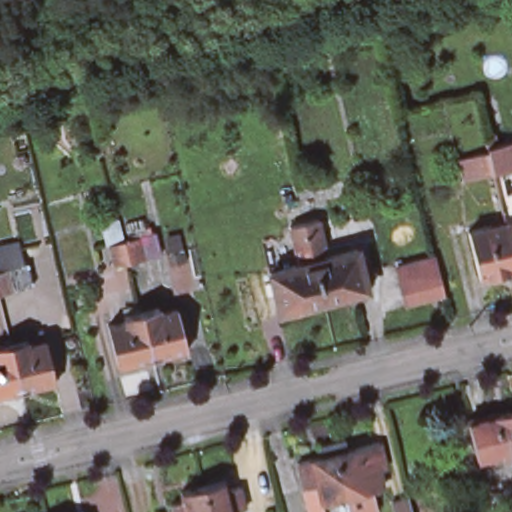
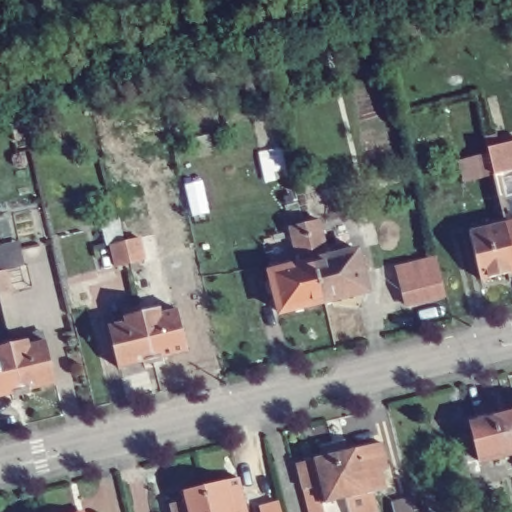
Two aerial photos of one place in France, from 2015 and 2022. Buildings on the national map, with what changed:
unchanged [(496,169),(498,168),(492,141),(490,142),(488,133),(499,131),(500,139),(512,136),(512,165),(503,167),(509,190),(512,189),(512,267),(484,273),(472,225),(508,217),(496,169)]
unchanged [(491,147),(496,169),(482,172),(477,150),(491,147)]
unchanged [(299,222),(313,219),(320,244),(317,245),(320,258),(351,249),(361,290),(319,301),(299,222)]
unchanged [(319,301),(274,313),(264,272),(297,263),(294,251),(292,252),(285,226),(299,222),(319,301)]
unchanged [(112,239),(125,236),(141,232),(146,254),(130,258),(117,261),(112,239)]
unchanged [(0,294),(0,246),(20,241),(25,267),(29,290),(15,293),(0,296),(0,294)]
unchanged [(443,299),(405,309),(396,270),(434,261),(443,299)]
unchanged [(136,310),(154,306),(155,312),(172,308),(182,349),(147,358),(136,310)]
unchanged [(114,366),(104,325),(122,320),(120,314),(136,310),(147,358),(114,366)]
unchanged [(6,347),(24,343),(25,350),(42,346),(52,386),(17,395),(6,347)]
unchanged [(0,399),(0,349),(6,347),(17,395),(0,399)]
unchanged [(471,419),(512,409),(512,452),(480,459),(471,419)]
unchanged [(325,438),(339,434),(341,444),(373,436),(380,463),(372,465),(375,482),(340,491),(325,438)]
unchanged [(314,512),(302,512),(295,483),(297,483),(291,457),(316,451),(314,440),(325,438),(340,491),(317,496),(320,510),(314,512)]
unchanged [(225,485),(227,494),(239,491),(243,512),(210,512),(205,490),(225,485)]
unchanged [(210,512),(171,512),(170,507),(182,504),(180,496),(205,490),(210,512)]
unchanged [(407,512),(392,512),(392,508),(405,505),(407,512)]

